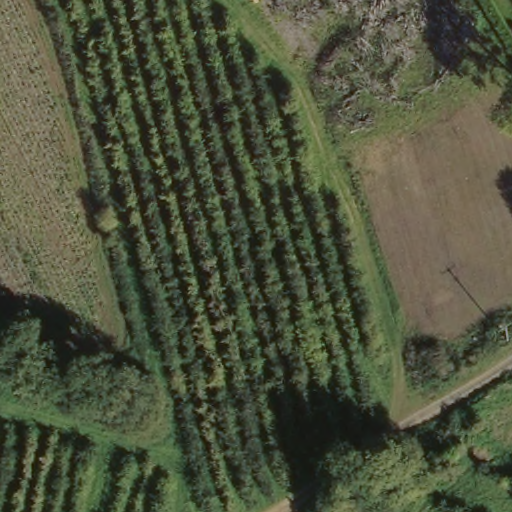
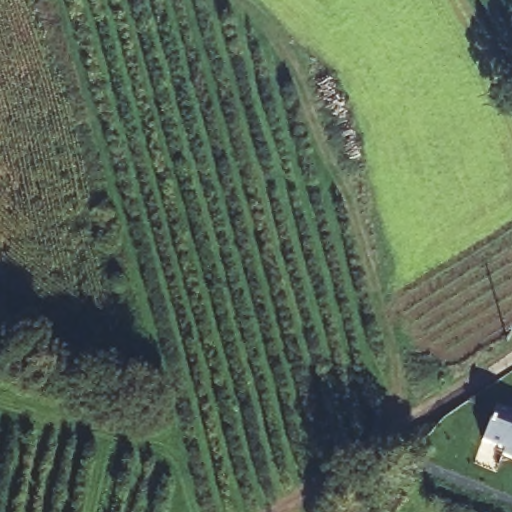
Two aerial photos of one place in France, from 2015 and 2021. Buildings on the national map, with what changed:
new [(505,453),(484,444),(494,411),(505,414),(506,411),(512,413),(512,461),(504,458),(505,453)]

